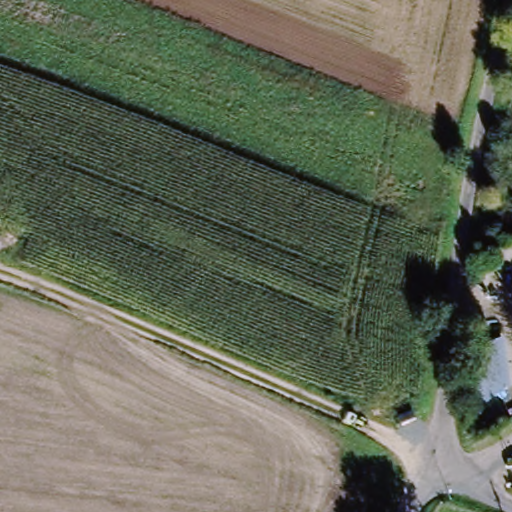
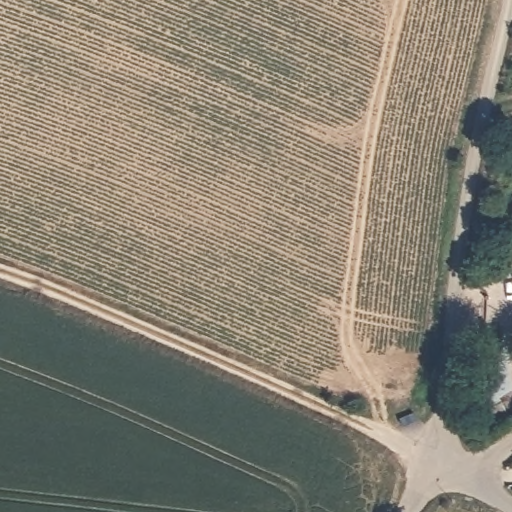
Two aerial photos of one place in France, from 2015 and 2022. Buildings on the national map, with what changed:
[]

